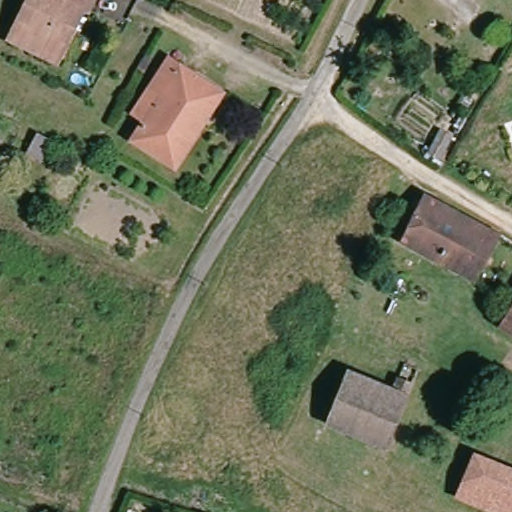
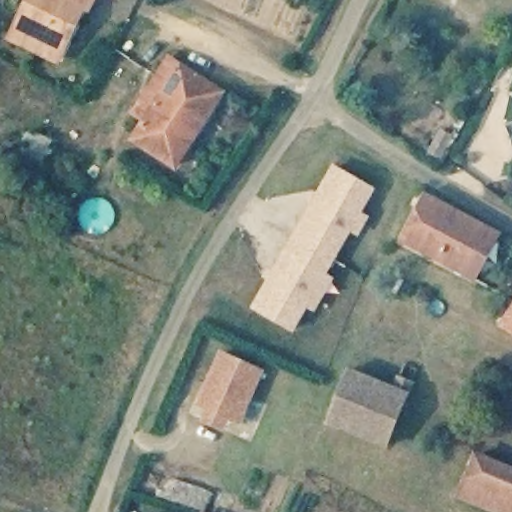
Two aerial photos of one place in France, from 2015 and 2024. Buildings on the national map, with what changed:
unchanged [(80,6),(63,41),(66,42),(56,61),(9,38),(18,19),(28,0),(92,0),(87,10),(80,6)]
unchanged [(173,163),(137,140),(149,121),(138,114),(154,88),(173,59),(226,93),(200,133),(179,166),(173,163)]
unchanged [(439,163),(425,156),(439,131),(452,139),(439,163)]
unchanged [(39,160),(26,153),(36,134),(49,141),(39,160)]
new [(361,214),(370,218),(358,239),(349,235),(327,275),(334,280),(314,315),(305,312),(293,333),(251,308),(332,166),(374,190),(361,214)]
unchanged [(498,232),(474,279),(400,241),(425,194),(498,232)]
unchanged [(500,324),(512,307),(512,331),(500,324)]
new [(264,371),(240,426),(227,421),(222,431),(200,422),(205,411),(197,407),(220,352),(264,371)]
unchanged [(385,447),(327,423),(348,370),(393,389),(397,379),(411,384),(385,447)]
unchanged [(459,495),(476,454),(512,469),(512,512),(499,512),(459,495)]

